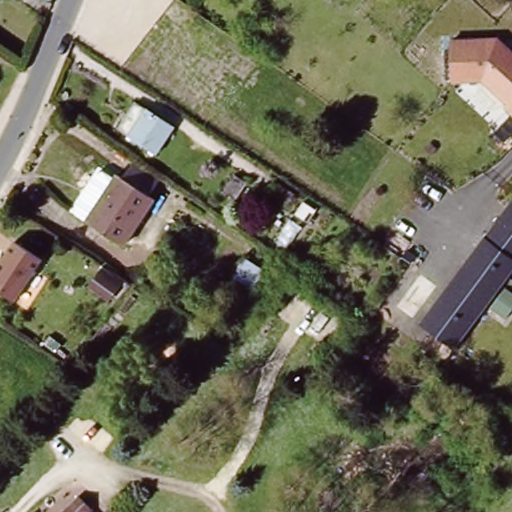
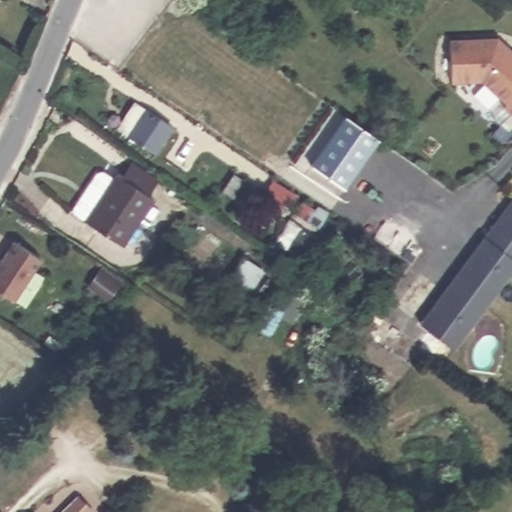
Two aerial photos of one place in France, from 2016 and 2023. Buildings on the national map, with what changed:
unchanged [(453,81),(449,38),(499,36),(512,48),(512,115),(504,107),(506,103),(482,80),(453,81)]
demolished [(233,52),(263,72),(254,85),(224,65),(233,52)]
unchanged [(119,129),(136,105),(171,129),(154,154),(153,153),(119,129)]
new [(346,116),(379,139),(344,188),(311,165),(346,116)]
unchanged [(238,169),(251,177),(241,192),(228,183),(238,169)]
unchanged [(120,242),(84,218),(115,172),(151,195),(120,242)]
unchanged [(512,198),(512,272),(454,348),(419,322),(484,234),(512,198)]
unchanged [(0,294),(0,268),(15,243),(43,260),(16,303),(0,294)]
unchanged [(262,270),(249,288),(231,275),(243,257),(262,270)]
unchanged [(75,492),(94,510),(93,512),(56,512),(75,492)]

